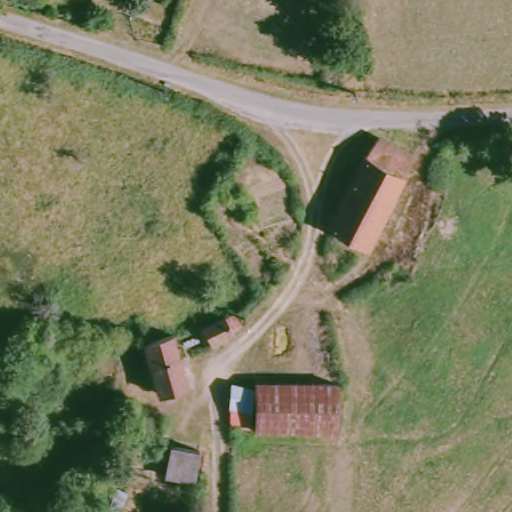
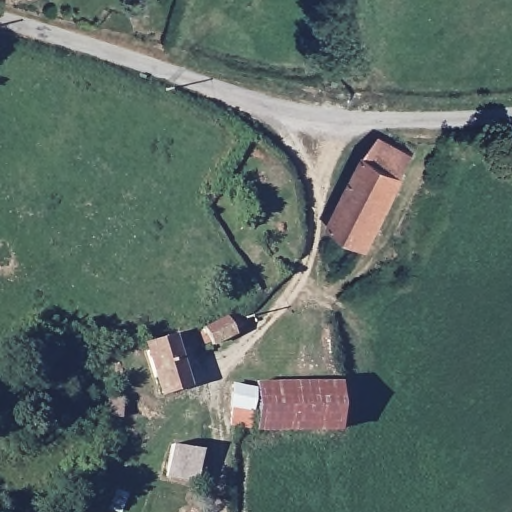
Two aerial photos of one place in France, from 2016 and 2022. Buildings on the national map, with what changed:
unchanged [(420,160),(373,253),(336,234),(372,163),(388,143),(420,160)]
unchanged [(235,317),(238,321),(241,325),(233,330),(233,334),(213,347),(203,329),(225,317),(228,320),(235,317)]
unchanged [(175,337),(190,389),(163,397),(148,347),(175,337)]
unchanged [(265,384),(344,384),(345,431),(264,431),(264,429),(265,384)]
unchanged [(237,427),(238,389),(258,389),(255,428),(240,427),(237,427)]
unchanged [(113,419),(113,397),(124,396),(125,419),(113,419)]
unchanged [(172,477),(177,446),(205,450),(200,482),(172,477)]

